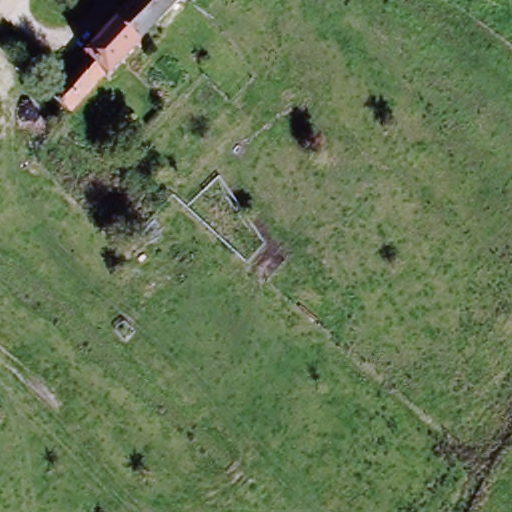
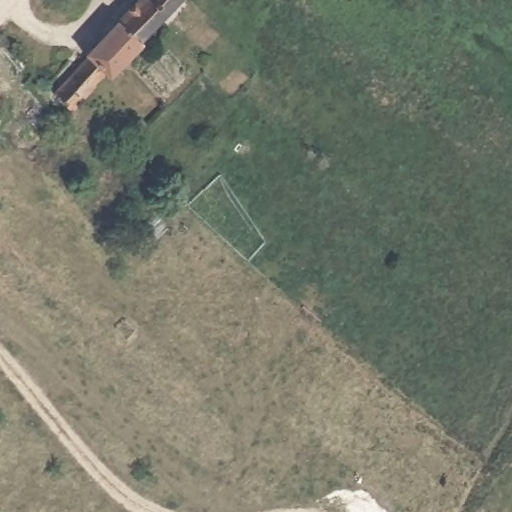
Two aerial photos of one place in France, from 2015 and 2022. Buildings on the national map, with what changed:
unchanged [(46,99),(79,64),(73,60),(105,25),(108,29),(136,0),(176,0),(132,46),(134,51),(102,85),(95,79),(62,114),(46,99)]

